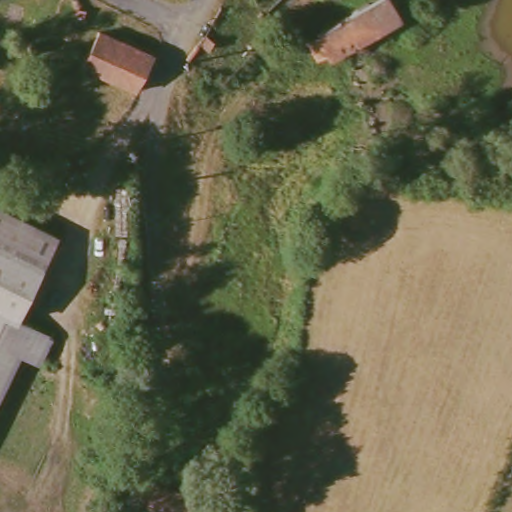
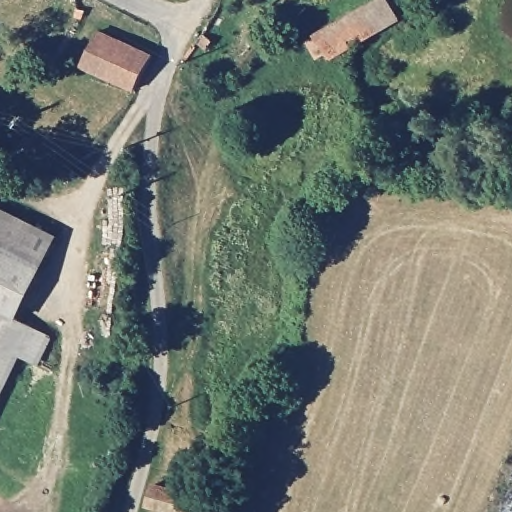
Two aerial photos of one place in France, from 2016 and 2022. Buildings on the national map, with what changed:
unchanged [(0,0),(9,0),(8,1),(0,0)]
unchanged [(393,27),(360,48),(348,56),(344,50),(334,54),(331,53),(328,50),(326,42),(336,35),(333,30),(378,1),(393,27)]
unchanged [(97,34),(153,59),(136,92),(84,67),(85,63),(97,34)]
unchanged [(131,165),(124,163),(125,156),(133,158),(131,165)]
unchanged [(0,210),(54,236),(43,266),(0,247),(0,210)]
unchanged [(19,320),(0,311),(0,247),(43,266),(19,320)]
unchanged [(49,363),(27,354),(0,411),(0,311),(19,320),(59,339),(49,363)]
unchanged [(193,512),(167,512),(151,508),(156,487),(198,495),(193,512)]

